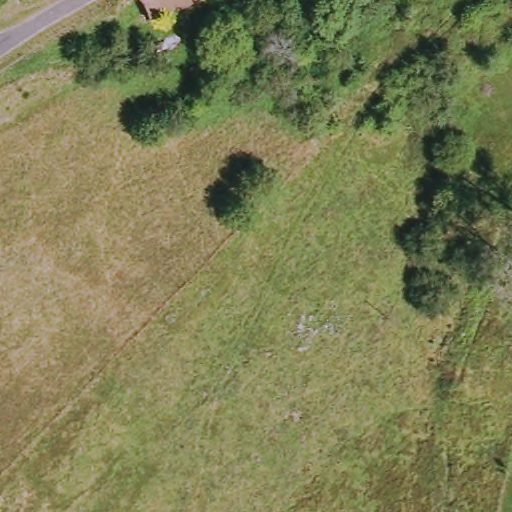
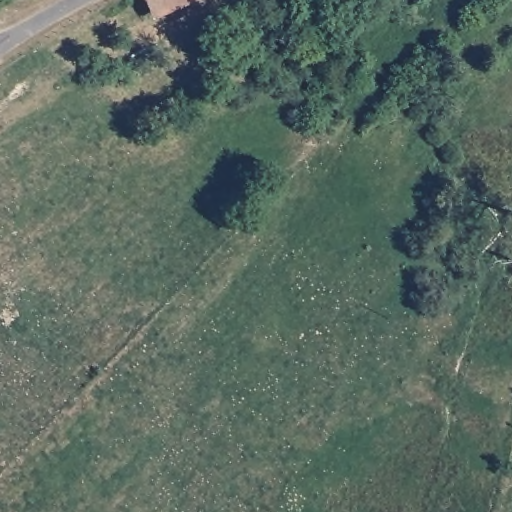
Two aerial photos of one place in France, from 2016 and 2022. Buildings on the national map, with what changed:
unchanged [(161,19),(141,0),(202,0),(161,19)]

